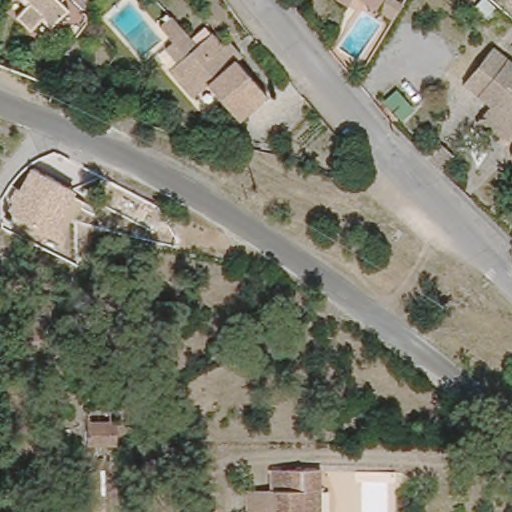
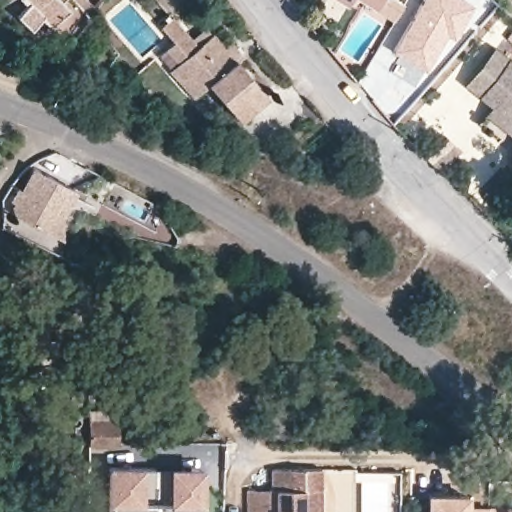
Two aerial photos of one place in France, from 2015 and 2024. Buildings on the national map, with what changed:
unchanged [(80,23),(57,1),(52,6),(60,14),(41,34),(32,25),(22,36),(6,21),(17,10),(9,3),(12,0),(69,0),(86,16),(80,23)]
unchanged [(394,24),(355,1),(349,11),(331,0),(386,0),(386,1),(402,11),(394,24)]
new [(422,0),(464,0),(477,8),(453,41),(448,38),(424,73),(391,51),(422,0)]
unchanged [(166,54),(174,47),(160,32),(172,21),(198,50),(213,38),(224,51),(230,46),(244,61),(238,66),(268,101),(240,126),(209,91),(194,104),(169,76),(178,68),(166,54)]
unchanged [(492,101),(465,79),(494,43),(512,57),(512,132),(485,109),(492,101)]
unchanged [(61,218),(63,242),(12,217),(9,204),(16,188),(19,190),(31,167),(76,191),(61,218)]
unchanged [(38,349),(48,349),(48,367),(15,366),(15,331),(38,331),(38,349)]
unchanged [(117,449),(88,449),(88,426),(117,427),(117,449)]
new [(202,512),(107,512),(107,466),(203,467),(202,512)]
unchanged [(277,500),(277,478),(327,479),(327,500),(327,512),(253,512),(253,500),(277,500)]
new [(469,505),(512,506),(512,512),(426,512),(427,494),(470,493),(469,505)]

